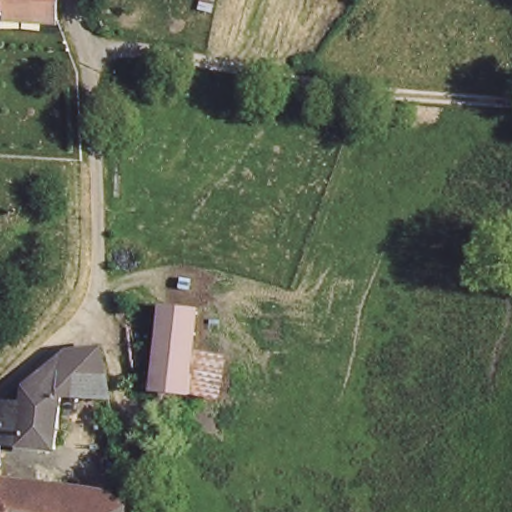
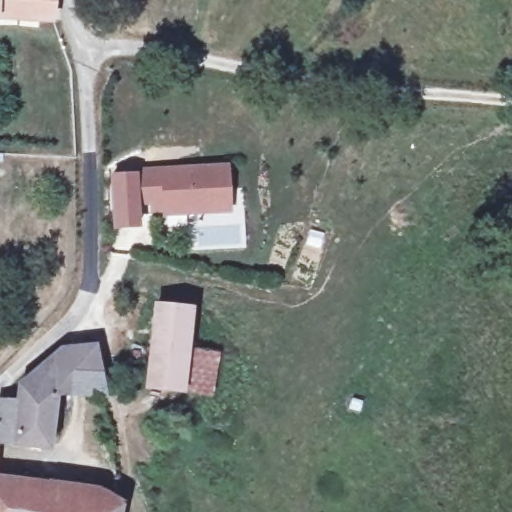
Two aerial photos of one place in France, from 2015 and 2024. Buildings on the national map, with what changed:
unchanged [(56,13),(25,13),(10,11),(0,11),(0,0),(56,0),(56,13)]
new [(232,163),(233,214),(163,217),(161,206),(149,206),(148,194),(133,195),(133,168),(232,163)]
unchanged [(194,305),(190,348),(221,350),(211,394),(185,393),(143,389),(154,303),(194,305)]
unchanged [(18,401),(22,379),(68,347),(103,346),(110,390),(57,381),(47,441),(0,437),(0,400),(18,401)]
unchanged [(0,512),(0,482),(110,498),(109,512),(0,512)]

